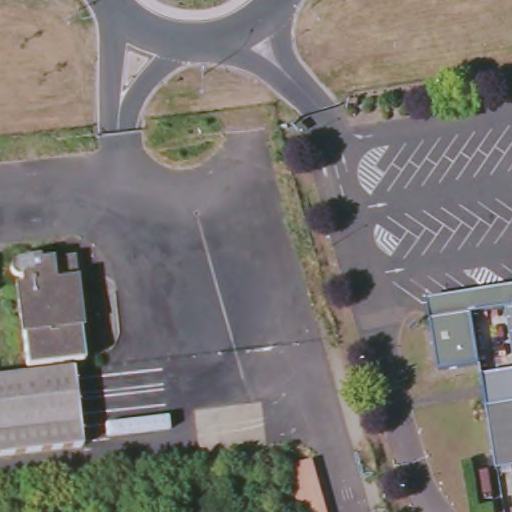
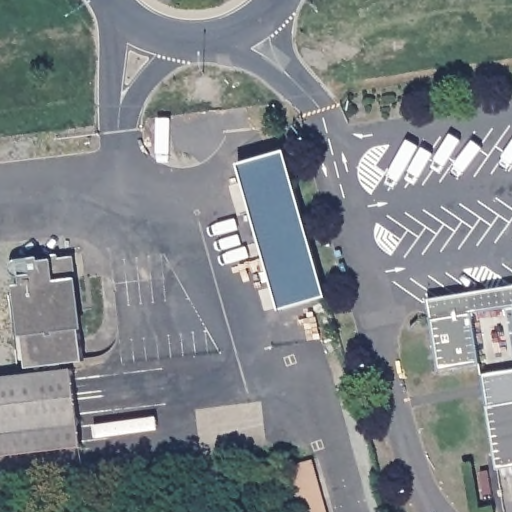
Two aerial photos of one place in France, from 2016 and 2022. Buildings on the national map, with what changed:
new [(285,150),(327,297),(281,311),(238,164),(285,150)]
unchanged [(50,364),(27,367),(16,285),(20,285),(20,277),(14,274),(10,268),(10,264),(12,260),(17,257),(38,254),(39,258),(63,255),(67,278),(75,277),(85,358),(64,361),(66,373),(52,376),(50,364)]
unchanged [(470,317),(429,323),(426,304),(512,290),(512,310),(470,317)]
unchanged [(470,317),(478,369),(437,376),(429,323),(470,317)]
unchanged [(0,382),(52,376),(66,373),(76,372),(87,445),(0,456),(0,382)]
unchanged [(496,474),(486,411),(512,406),(512,471),(496,474)]
unchanged [(327,512),(301,512),(288,465),(312,458),(327,512)]

